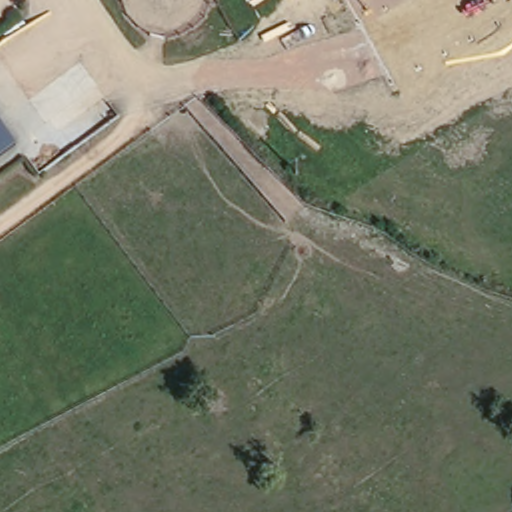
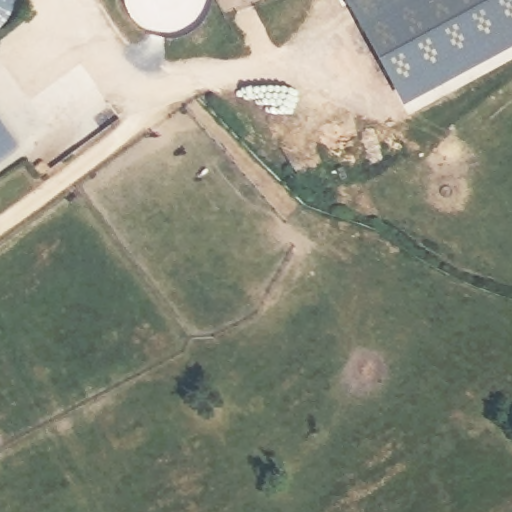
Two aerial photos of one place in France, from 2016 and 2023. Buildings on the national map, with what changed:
new [(14,9),(10,17),(4,24),(0,27),(0,0),(16,0),(14,9)]
new [(401,107),(344,0),(512,0),(512,48),(401,107)]
unchanged [(0,152),(0,120),(16,140),(0,152)]

